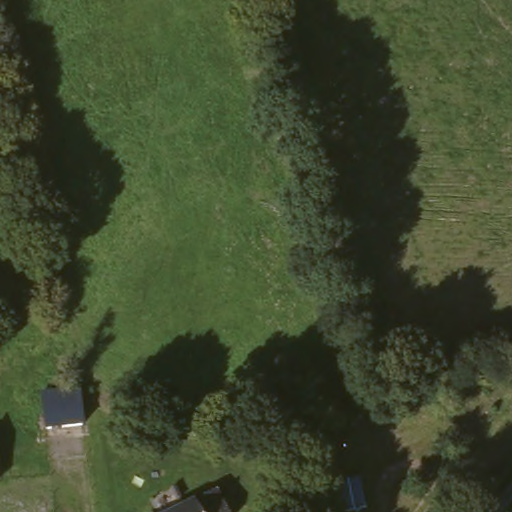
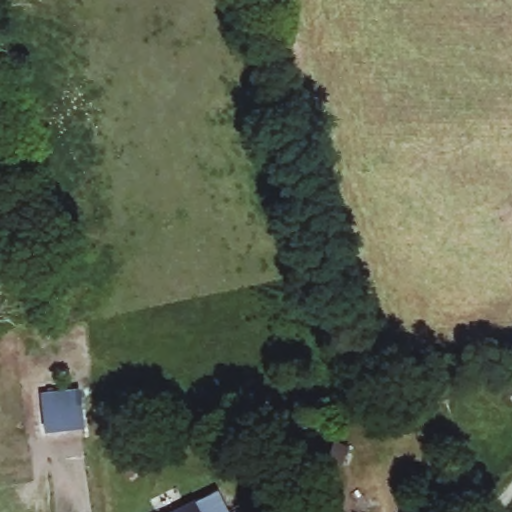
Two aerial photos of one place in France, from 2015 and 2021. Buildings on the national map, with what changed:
unchanged [(41,393),(82,389),(85,427),(45,429),(41,393)]
unchanged [(229,512),(159,512),(219,482),(229,512)]

